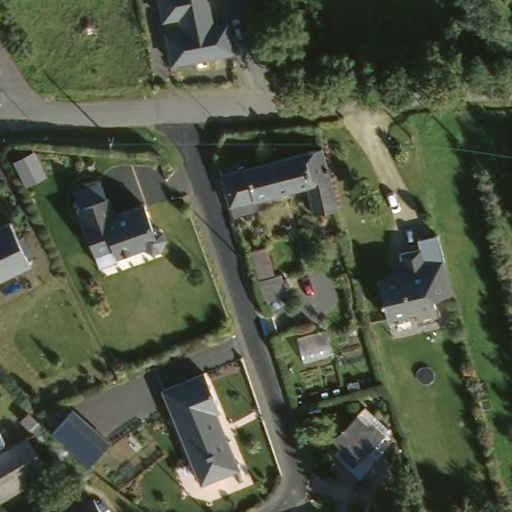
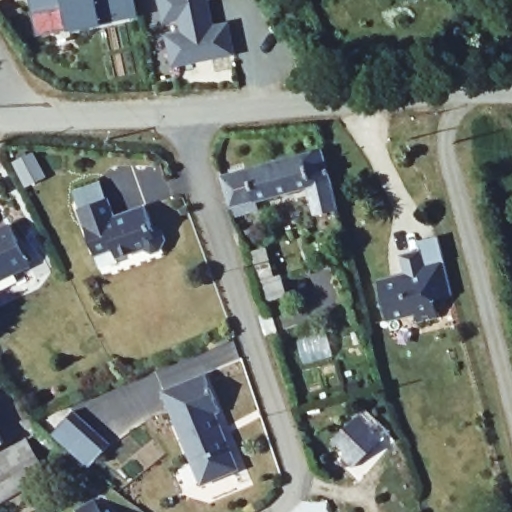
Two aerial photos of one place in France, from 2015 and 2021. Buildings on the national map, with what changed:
new [(140,17),(69,33),(69,30),(37,36),(29,0),(137,0),(140,17)]
unchanged [(214,19),(227,17),(235,49),(168,64),(164,34),(180,29),(178,19),(160,20),(158,0),(210,0),(214,19)]
unchanged [(331,138),(350,202),(325,210),(318,182),(271,195),(273,206),(242,218),(228,171),(331,138)]
new [(21,168),(33,190),(15,199),(4,177),(21,168)]
unchanged [(105,195),(112,214),(144,203),(151,225),(159,229),(162,236),(158,245),(151,247),(143,243),(114,253),(110,242),(93,249),(77,205),(105,195)]
unchanged [(28,264),(0,277),(0,223),(6,220),(28,264)]
unchanged [(272,251),(280,276),(267,280),(259,255),(272,251)]
unchanged [(430,267),(428,261),(448,257),(456,290),(439,293),(443,311),(429,313),(426,305),(418,306),(396,312),(386,276),(409,271),(430,267)]
unchanged [(297,281),(302,297),(270,309),(266,293),(297,281)]
unchanged [(217,402),(212,405),(235,460),(204,479),(161,388),(203,368),(217,402)]
unchanged [(332,438),(344,426),(349,431),(374,406),(388,419),(390,416),(398,425),(365,456),(354,446),(345,453),(332,438)]
unchanged [(90,466),(65,448),(60,456),(18,420),(28,410),(53,432),(73,410),(110,442),(90,466)]
unchanged [(0,434),(0,418),(6,430),(0,434)]
unchanged [(50,472),(0,499),(0,448),(29,432),(50,472)]
unchanged [(87,512),(84,503),(104,493),(114,512),(87,512)]

